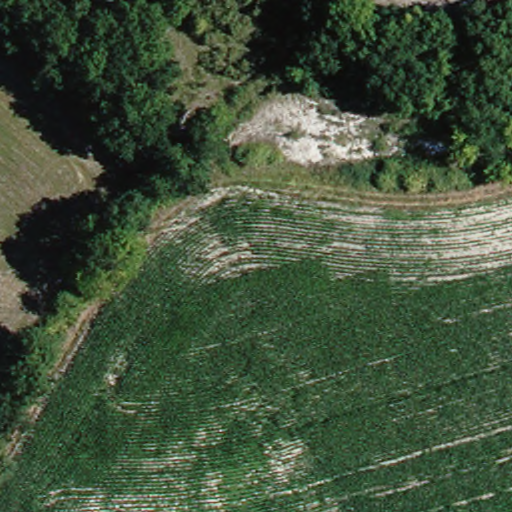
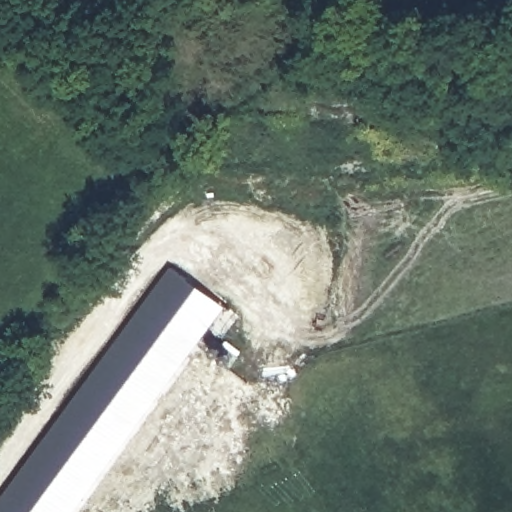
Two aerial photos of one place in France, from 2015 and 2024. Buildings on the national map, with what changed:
new [(0,512),(0,503),(174,268),(223,305),(72,512),(0,512)]

